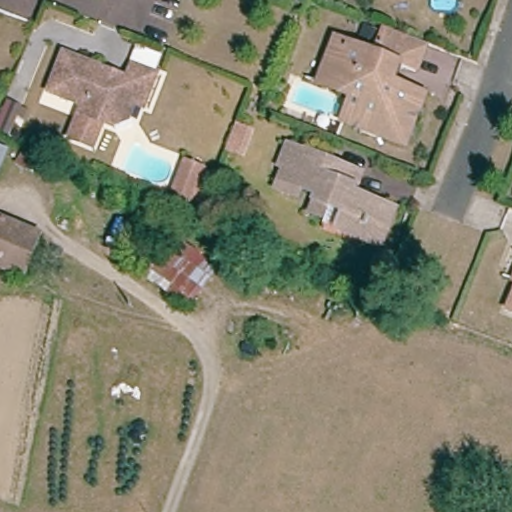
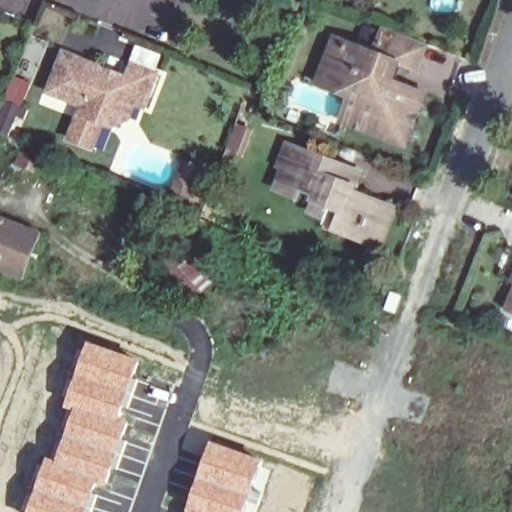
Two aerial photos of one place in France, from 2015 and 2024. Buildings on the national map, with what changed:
unchanged [(311,84),(321,60),(328,41),(340,45),(364,55),(374,27),(413,43),(402,72),(391,68),(385,86),(412,97),(395,144),(370,134),(334,120),(343,97),(311,84)]
unchanged [(77,114),(81,105),(56,95),(51,84),(62,52),(104,69),(122,75),(129,78),(134,64),(157,73),(152,86),(145,105),(135,102),(127,121),(112,128),(101,123),(94,142),(71,133),(77,114)]
demolished [(10,149),(0,172),(0,146),(10,149)]
unchanged [(334,231),(340,214),(325,208),(321,220),(305,213),(311,197),(293,190),(290,198),(273,191),(281,169),(275,166),(282,147),(288,149),(330,166),(354,176),(350,188),(347,194),(387,210),(377,240),(373,247),(355,239),(334,231)]
unchanged [(187,158),(204,164),(194,192),(177,186),(187,158)]
unchanged [(42,235),(24,277),(0,268),(0,218),(42,235)]
demolished [(194,308),(139,274),(171,233),(221,265),(194,308)]
new [(57,459),(75,410),(67,407),(90,341),(141,360),(125,416),(131,418),(120,453),(106,485),(102,483),(89,512),(29,512),(49,457),(57,459)]
new [(212,441),(263,459),(262,465),(270,468),(256,512),(189,512),(187,511),(212,441)]

